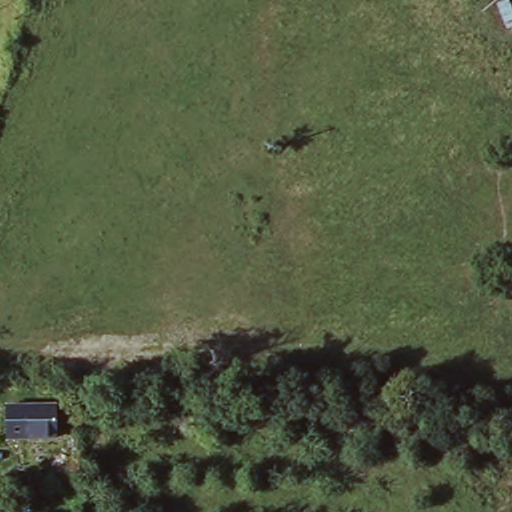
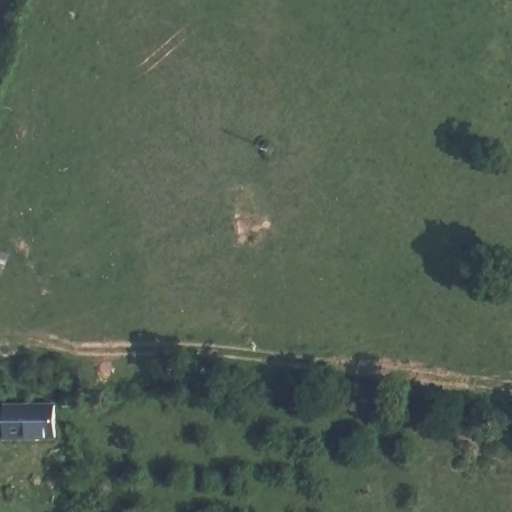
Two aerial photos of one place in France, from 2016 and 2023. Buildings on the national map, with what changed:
unchanged [(54,410),(54,441),(21,442),(21,412),(54,410)]

